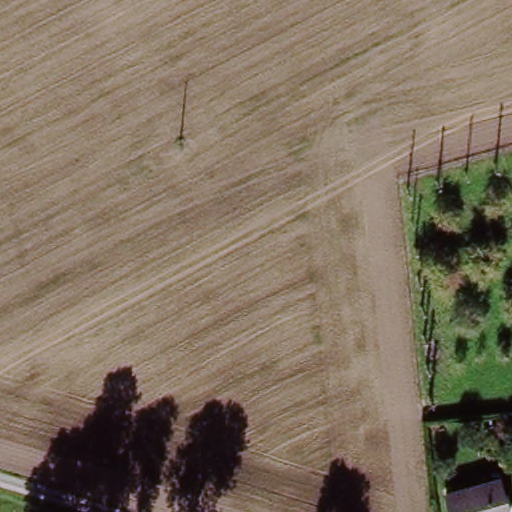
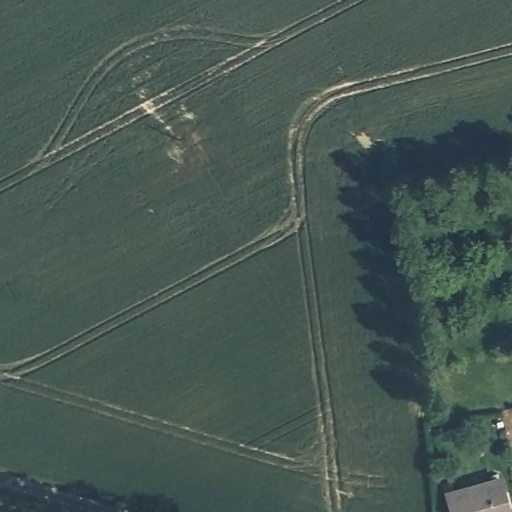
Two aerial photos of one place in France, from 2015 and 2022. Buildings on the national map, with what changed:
unchanged [(457,512),(456,510),(451,493),(502,479),(507,497),(512,512),(457,512)]

